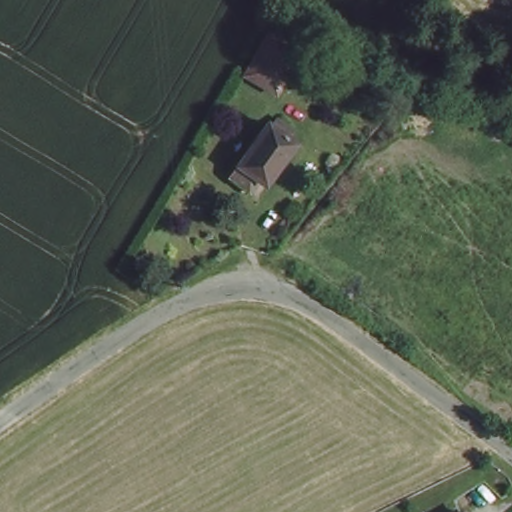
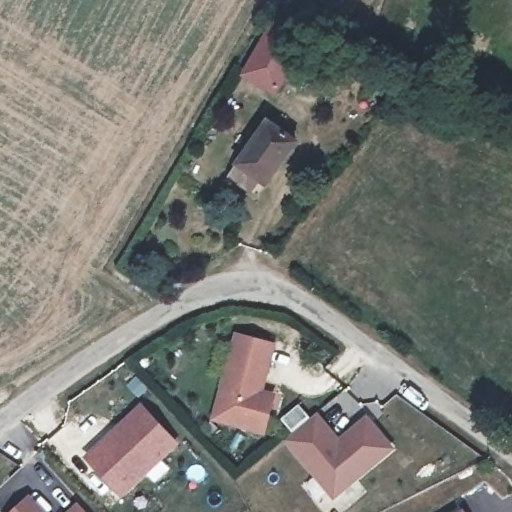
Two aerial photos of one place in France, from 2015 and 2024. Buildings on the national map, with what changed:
unchanged [(276,18),(287,25),(282,34),(304,46),(278,95),(245,74),(276,18)]
unchanged [(386,71),(380,81),(360,72),(367,62),(386,71)]
unchanged [(293,142),(262,186),(255,182),(246,193),(227,181),(265,125),(293,142)]
new [(264,435),(209,420),(233,332),(275,342),(264,390),(275,393),(264,435)]
new [(120,498),(81,457),(140,402),(178,444),(120,498)]
new [(316,412),(338,437),(366,413),(395,447),(332,500),(283,441),(316,412)]
new [(45,512),(8,512),(28,494),(45,512)]
new [(66,512),(77,503),(85,512),(66,512)]

